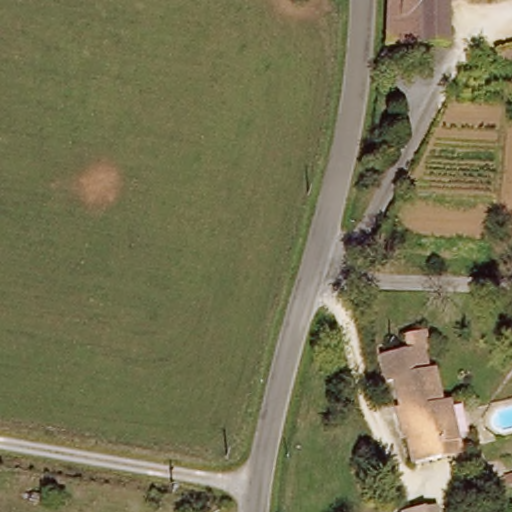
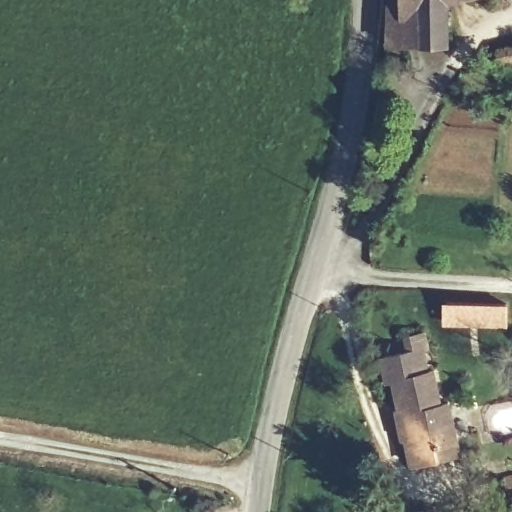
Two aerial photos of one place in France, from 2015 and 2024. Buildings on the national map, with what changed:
unchanged [(450,43),(389,42),(391,0),(461,0),(450,2),(450,43)]
unchanged [(503,65),(500,48),(512,46),(512,63),(503,65)]
new [(444,323),(444,301),(510,303),(509,325),(444,323)]
unchanged [(414,471),(407,443),(404,443),(399,423),(407,421),(404,411),(400,412),(394,381),(386,384),(380,358),(397,353),(409,349),(407,331),(424,327),(426,342),(423,344),(421,349),(424,356),(427,374),(435,373),(442,403),(448,402),(457,445),(461,459),(440,464),(414,471)]
unchanged [(410,509),(409,505),(432,499),(440,498),(443,512),(410,512),(410,509)]

